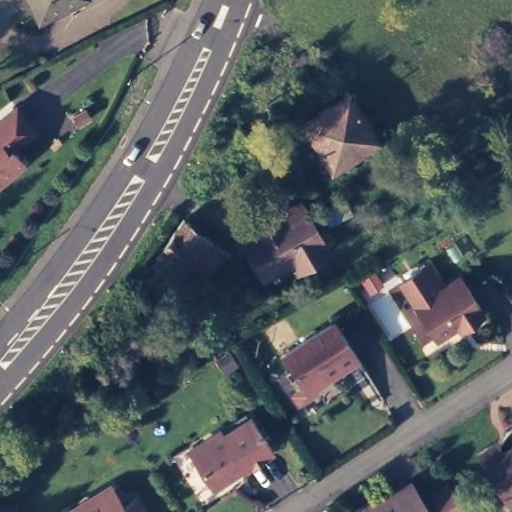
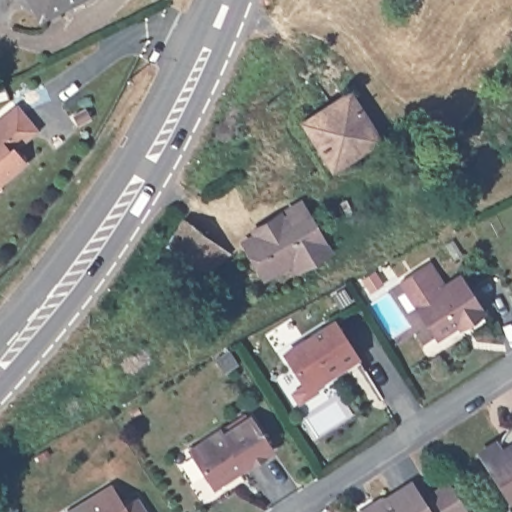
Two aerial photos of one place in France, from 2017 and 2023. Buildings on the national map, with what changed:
unchanged [(82,0),(40,20),(32,0),(82,0)]
unchanged [(380,131),(347,152),(351,157),(333,169),(318,145),(327,139),(315,121),(310,114),(331,101),(352,87),(380,131)]
unchanged [(15,105),(34,129),(15,145),(25,159),(0,179),(0,117),(15,105)]
unchanged [(262,229),(259,222),(285,207),(288,214),(295,209),(293,203),(305,196),(315,212),(322,222),(333,242),(335,247),(302,263),(300,258),(298,256),(270,272),(257,250),(248,236),(262,229)]
unchanged [(225,264),(192,305),(148,272),(180,231),(225,264)]
unchanged [(450,317),(435,327),(415,297),(460,270),(482,305),(464,317),(455,323),(450,317)]
unchanged [(302,398),(293,387),(307,378),(285,348),(335,317),(357,350),(342,360),(345,365),(318,382),(320,385),(302,398)]
unchanged [(224,424),(228,431),(255,412),(275,445),(250,463),(245,458),(237,465),(234,475),(226,480),(218,480),(195,445),(224,424)]
unchanged [(433,512),(361,512),(360,511),(383,493),(387,499),(412,481),(433,512)]
unchanged [(113,487),(127,505),(138,498),(148,512),(73,512),(113,487)]
unchanged [(442,500),(458,490),(472,512),(450,512),(442,500)]

